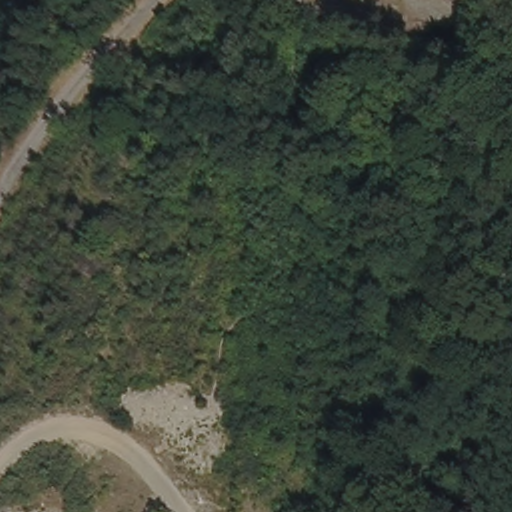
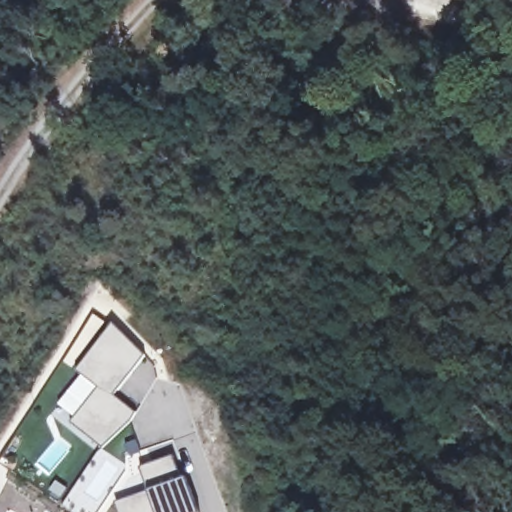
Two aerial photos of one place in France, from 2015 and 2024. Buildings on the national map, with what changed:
new [(78,420),(62,406),(86,376),(81,372),(117,327),(146,358),(114,396),(139,415),(136,420),(105,449),(74,424),(78,420)]
new [(117,504),(152,494),(142,469),(174,458),(183,482),(187,480),(198,512),(120,512),(117,504)]

